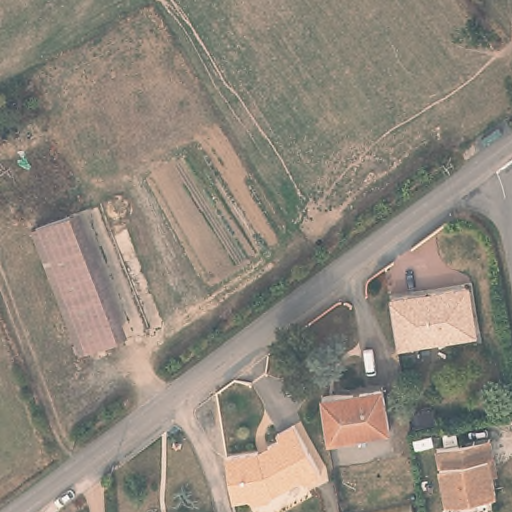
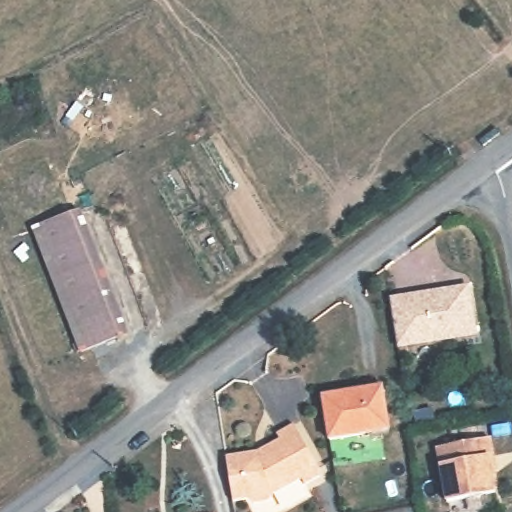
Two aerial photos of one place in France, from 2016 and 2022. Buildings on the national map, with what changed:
unchanged [(31,228),(70,212),(120,332),(82,348),(31,228)]
unchanged [(390,302),(408,299),(408,302),(432,298),(431,295),(458,290),(468,289),(476,335),(465,337),(398,348),(390,302)]
unchanged [(381,385),(388,428),(326,439),(319,395),(381,385)]
unchanged [(230,489),(226,457),(258,453),(280,441),(277,435),(291,428),(295,426),(319,472),(320,478),(304,486),(301,480),(300,481),(272,496),(268,502),(253,504),(248,500),(232,502),(230,489)]
unchanged [(456,445),(476,441),(486,439),(488,447),(493,475),(489,476),(492,495),(491,495),(460,501),(444,503),(434,449),(456,445)]

